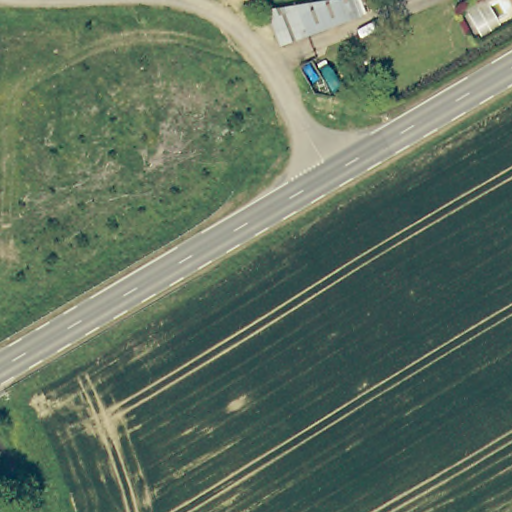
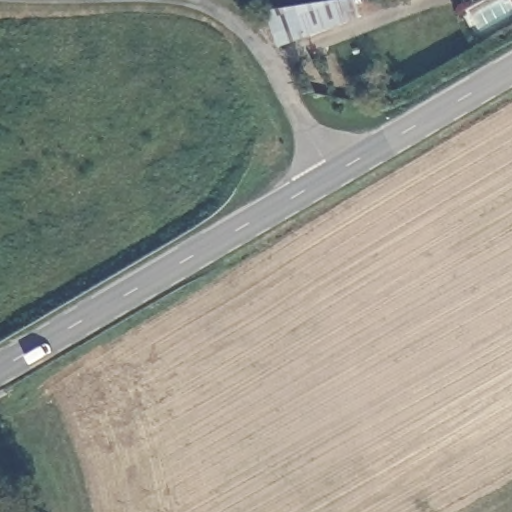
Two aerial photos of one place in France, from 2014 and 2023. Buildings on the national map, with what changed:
unchanged [(286,47),(273,13),(347,0),(362,0),(368,15),(286,47)]

